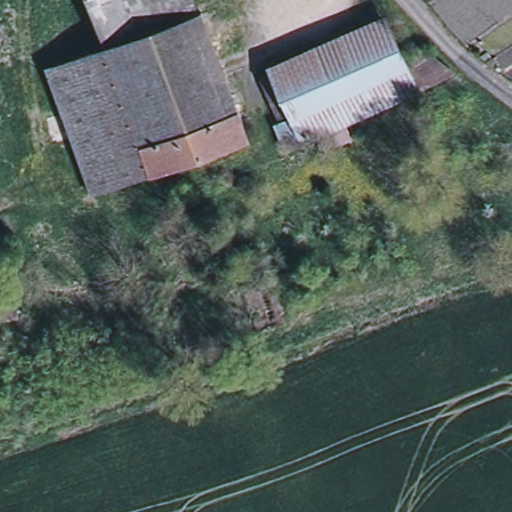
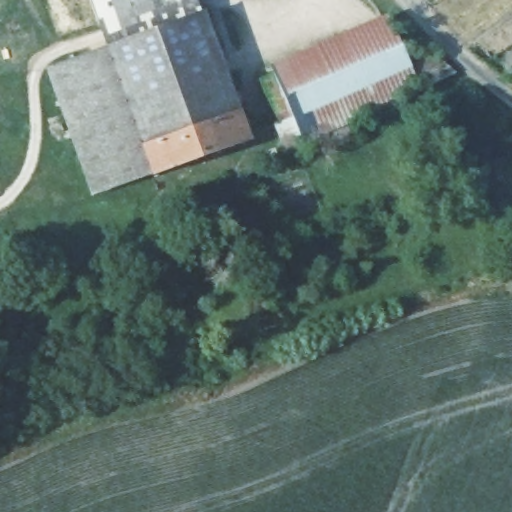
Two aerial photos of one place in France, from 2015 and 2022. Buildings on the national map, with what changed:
unchanged [(193,0),(201,21),(105,55),(84,0),(193,0)]
unchanged [(286,75),(282,66),(398,15),(421,66),(441,56),(467,75),(323,139),(326,148),(320,150),(316,142),(299,149),(289,125),(294,123),(274,80),(286,75)]
unchanged [(246,146),(90,204),(44,77),(105,55),(201,21),(246,146)]
unchanged [(178,215),(189,245),(175,250),(163,221),(178,215)]
unchanged [(276,284),(289,327),(262,334),(249,292),(276,284)]

